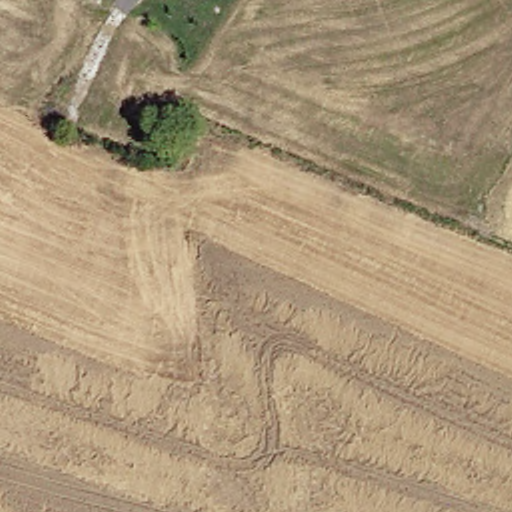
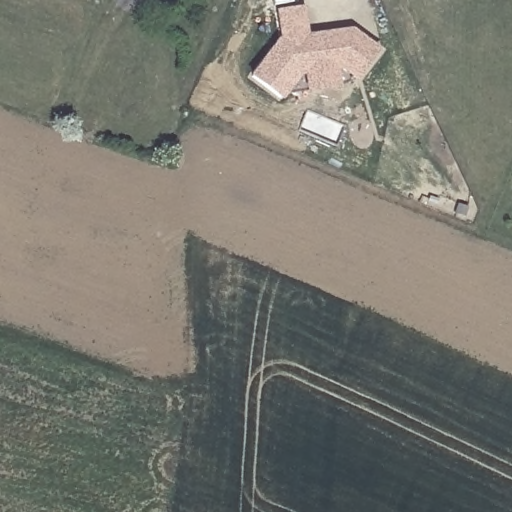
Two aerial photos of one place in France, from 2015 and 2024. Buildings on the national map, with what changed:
new [(280,39),(283,38),(279,10),(303,5),(307,34),(353,27),(379,46),(358,75),(343,65),(301,72),(283,96),(253,75),(280,39)]
new [(338,66),(340,83),(309,88),(305,71),(338,66)]

